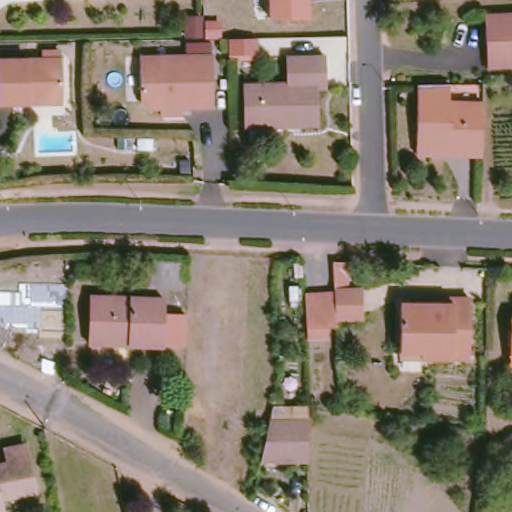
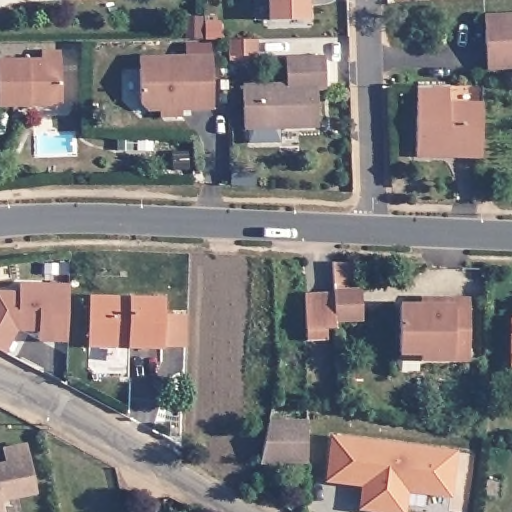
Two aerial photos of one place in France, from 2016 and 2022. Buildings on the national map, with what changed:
unchanged [(312,21),(270,22),(270,0),(312,0),(312,21)]
unchanged [(492,17),(512,17),(512,68),(494,69),(492,17)]
unchanged [(187,113),(187,119),(167,119),(167,113),(155,114),(143,102),(143,58),(217,56),(218,112),(187,113)]
unchanged [(0,103),(0,58),(62,58),(63,98),(63,104),(32,104),(0,103)]
unchanged [(243,133),(243,88),(284,87),(285,61),(324,60),(325,92),(317,92),(318,125),(318,132),(300,132),(243,133)]
unchanged [(409,156),(410,94),(441,92),(442,107),(479,106),(478,148),(478,155),(439,155),(409,156)]
unchanged [(332,264),(355,263),(355,293),(332,292),(332,264)]
new [(20,291),(20,282),(68,284),(67,343),(39,342),(39,332),(17,331),(5,352),(0,349),(0,291),(20,291)]
unchanged [(332,320),(332,292),(358,293),(357,320),(332,320)]
unchanged [(85,340),(85,298),(160,299),(160,317),(182,317),(182,347),(160,346),(160,348),(128,349),(85,347),(85,340)]
unchanged [(420,361),(420,354),(400,353),(403,305),(442,306),(443,300),(471,301),(469,363),(420,361)]
unchanged [(305,336),(305,301),(329,301),(329,336),(305,336)]
unchanged [(509,318),(512,318),(512,350),(507,350),(509,318)]
unchanged [(512,364),(510,364),(507,350),(512,350),(512,364)]
unchanged [(262,462),(271,421),(306,421),(307,462),(262,462)]
new [(361,486),(325,482),(330,434),(457,451),(450,498),(407,493),(405,512),(374,512),(359,510),(361,486)]
unchanged [(5,460),(3,447),(25,443),(34,486),(0,492),(0,461),(5,460)]

